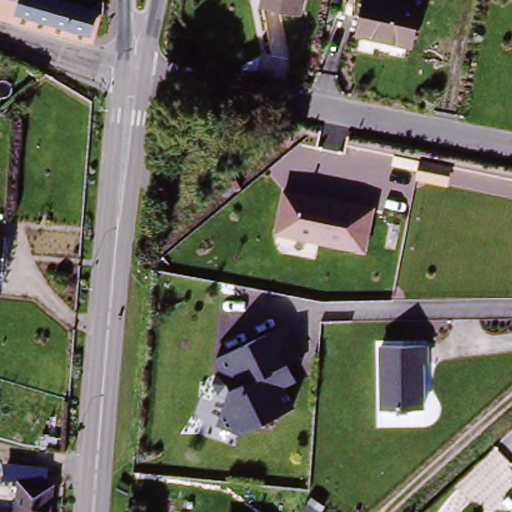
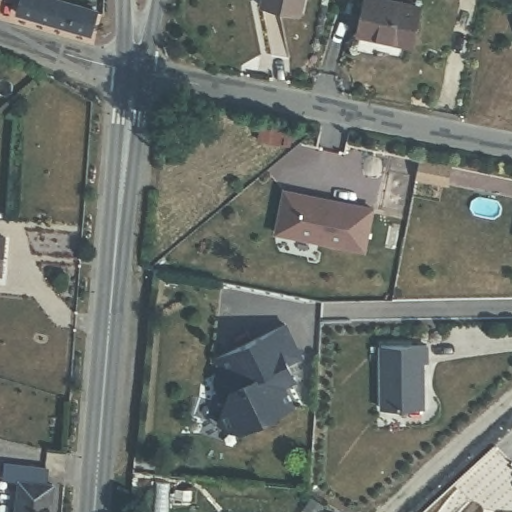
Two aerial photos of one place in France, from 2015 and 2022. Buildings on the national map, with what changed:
unchanged [(92,9),(86,35),(15,12),(17,0),(58,0),(92,9)]
unchanged [(263,6),(265,0),(307,0),(303,14),(263,6)]
unchanged [(360,34),(366,0),(396,0),(420,5),(411,46),(360,34)]
unchanged [(365,250),(272,233),(282,188),(375,206),(365,250)]
unchanged [(3,277),(0,277),(0,240),(10,241),(3,277)]
unchanged [(225,398),(218,396),(212,384),(218,371),(210,359),(286,322),(305,358),(290,368),(295,379),(285,385),(292,402),(237,430),(217,426),(225,398)]
unchanged [(379,345),(427,346),(427,364),(423,363),(423,407),(380,409),(379,345)]
unchanged [(6,478),(7,464),(45,468),(44,481),(53,483),(50,512),(15,512),(18,479),(6,478)]

